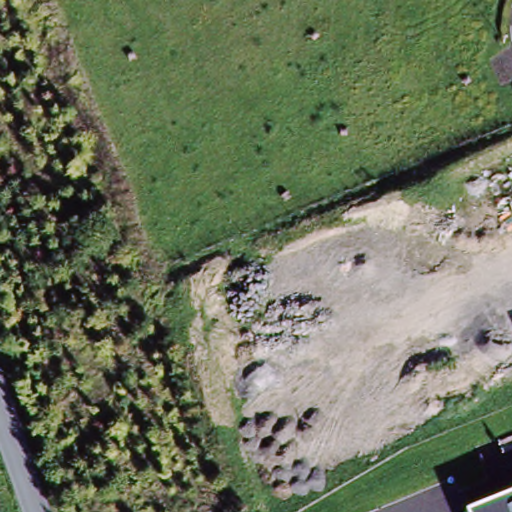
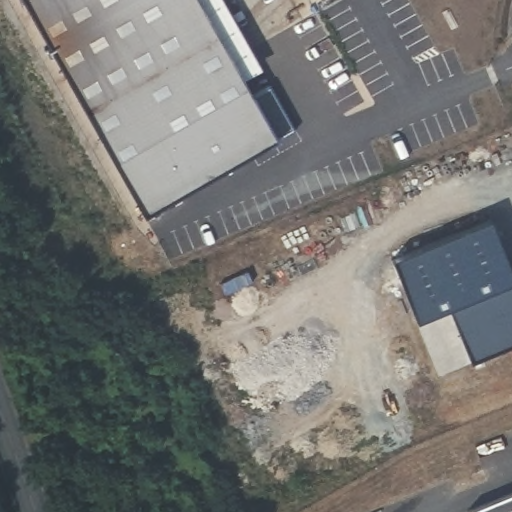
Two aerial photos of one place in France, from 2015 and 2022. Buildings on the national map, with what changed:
new [(269,86),(294,129),(276,138),(145,212),(24,0),(200,0),(253,96),(269,86)]
new [(512,269),(512,345),(474,361),(454,308),(418,320),(394,258),(491,220),(512,269)]
unchanged [(467,511),(512,492),(512,512),(467,512),(467,511)]

